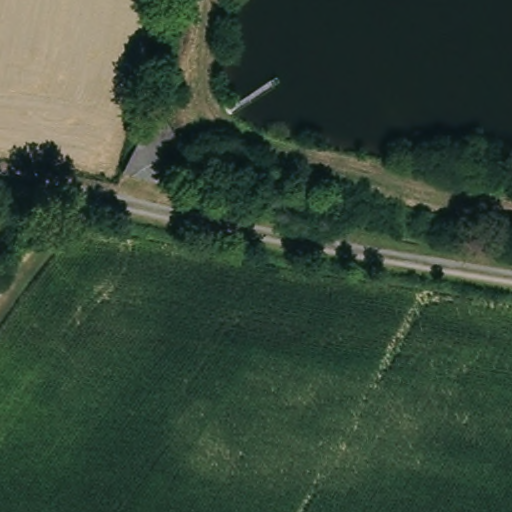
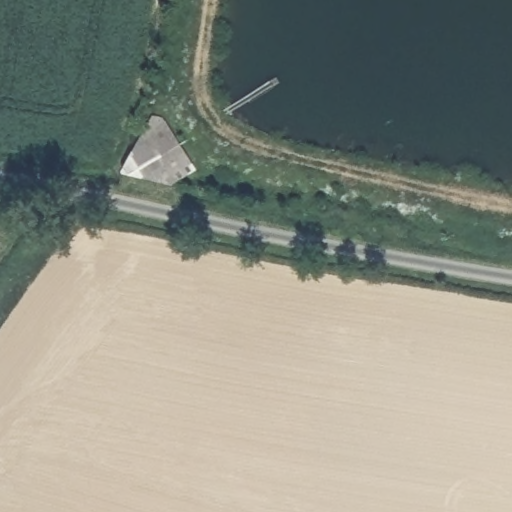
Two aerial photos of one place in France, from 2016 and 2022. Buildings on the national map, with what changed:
unchanged [(204,179),(129,172),(165,113),(204,179)]

